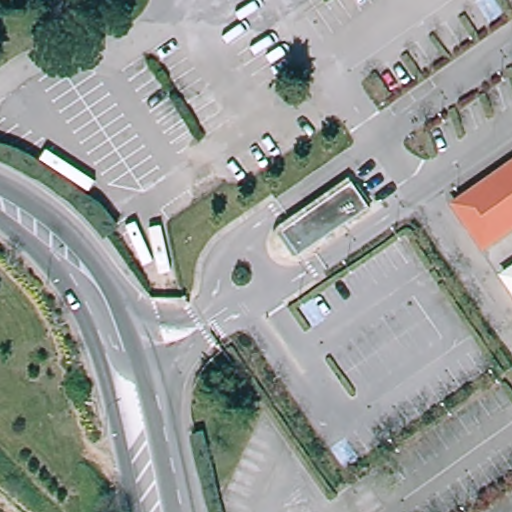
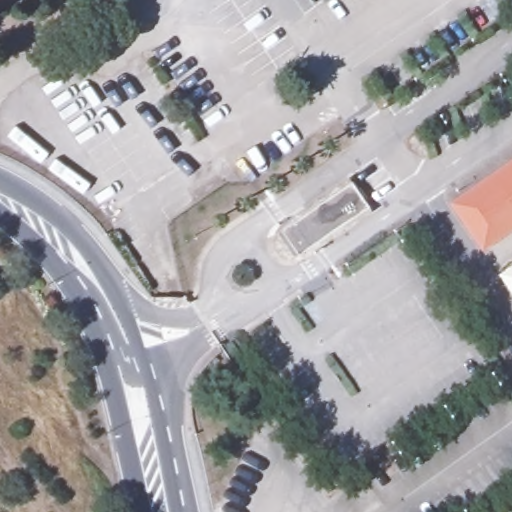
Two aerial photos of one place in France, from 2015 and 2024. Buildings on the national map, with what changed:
unchanged [(512,160),(512,231),(483,251),(450,203),(512,160)]
unchanged [(294,256),(292,256),(290,256),(289,256),(287,256),(286,255),(284,255),(283,254),(282,253),(281,253),(280,252),(279,251),(278,250),(277,249),(277,248),(276,247),(275,244),(274,242),(274,240),(274,238),(274,237),(275,235),(276,232),(276,231),(277,230),(277,229),(351,178),(370,204),(296,256),(295,256),(294,256)]
unchanged [(512,260),(512,288),(499,269),(512,260)]

